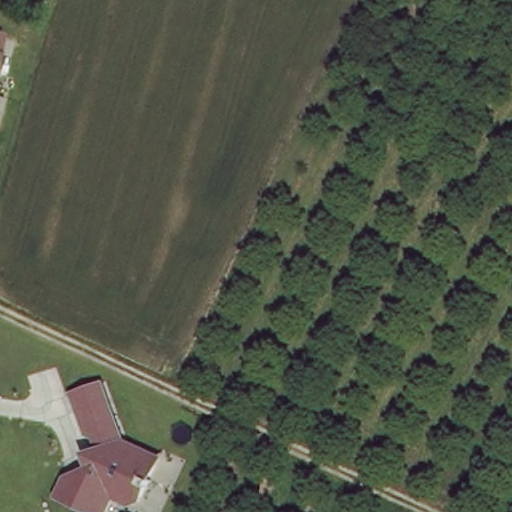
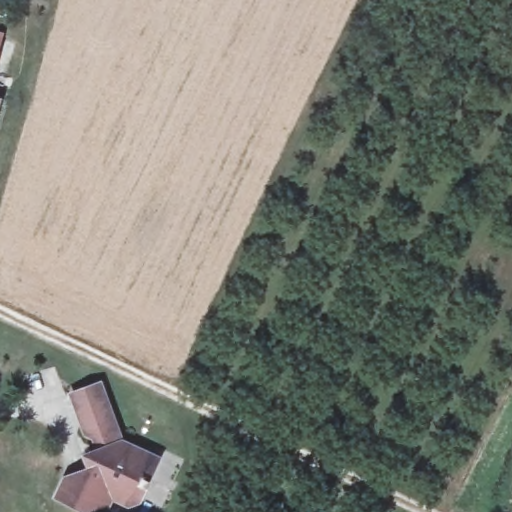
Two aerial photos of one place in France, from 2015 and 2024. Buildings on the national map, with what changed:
unchanged [(129,499),(114,502),(102,498),(95,512),(88,512),(48,496),(55,478),(87,466),(93,453),(86,435),(77,433),(69,409),(63,393),(92,383),(98,400),(117,445),(149,456),(129,499)]

